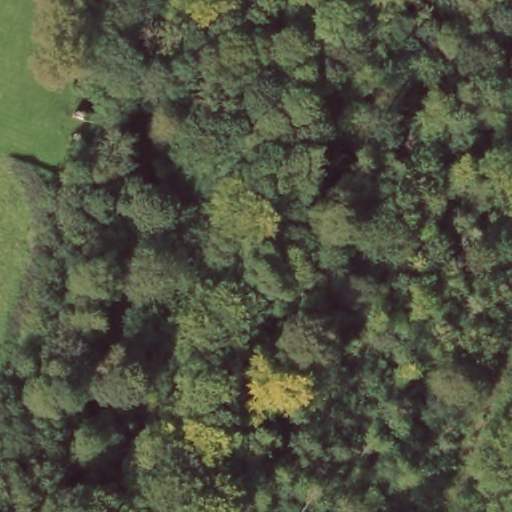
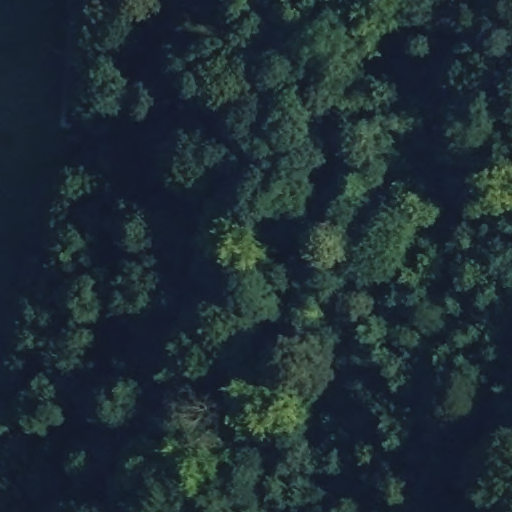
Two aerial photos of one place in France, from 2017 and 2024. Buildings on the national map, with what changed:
unchanged [(280,29),(282,34),(278,39),(272,40),(266,36),(266,31),(270,25),(275,25),(280,29)]

